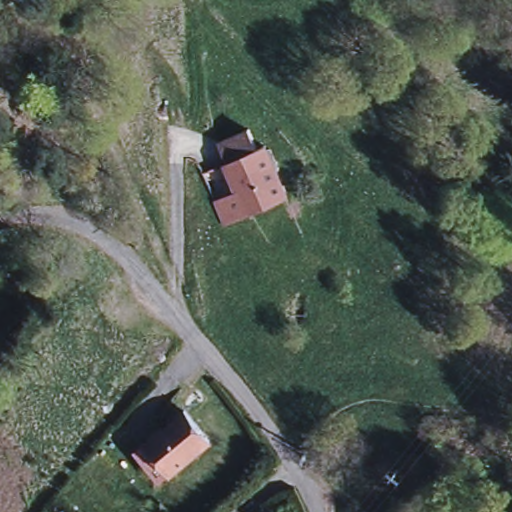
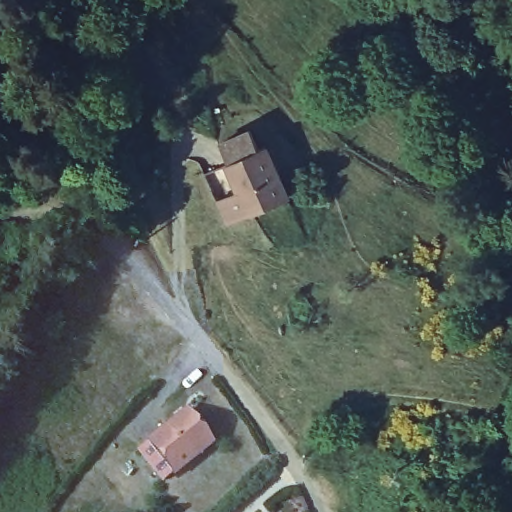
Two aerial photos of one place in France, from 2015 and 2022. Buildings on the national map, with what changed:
unchanged [(222,142),(252,130),(261,149),(268,146),(291,197),(230,224),(219,200),(243,189),(222,142)]
unchanged [(143,451),(138,444),(149,435),(186,405),(211,436),(174,466),(166,473),(163,476),(143,451)]

